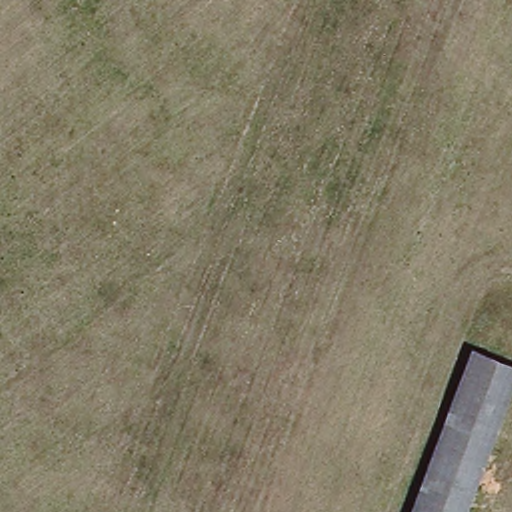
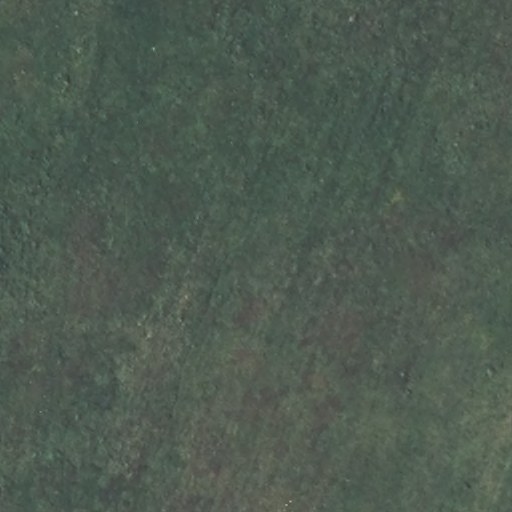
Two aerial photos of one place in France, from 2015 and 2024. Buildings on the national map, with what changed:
demolished [(458,470),(443,512),(412,512),(442,440),(480,350),(512,363),(512,402),(484,469),(458,470)]
demolished [(458,470),(484,469),(466,512),(443,512),(458,470)]

